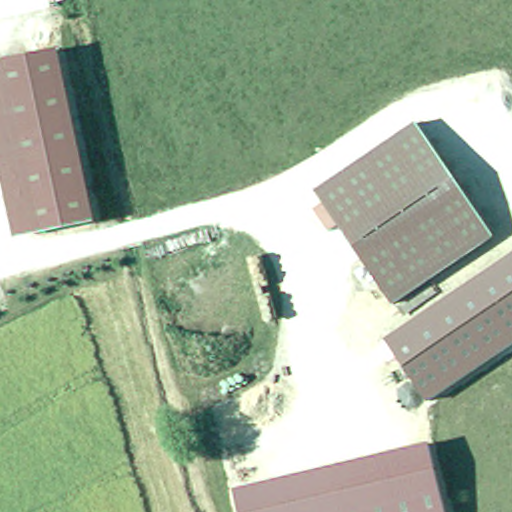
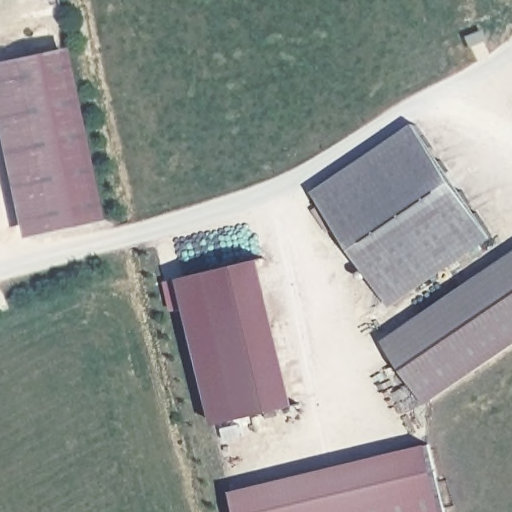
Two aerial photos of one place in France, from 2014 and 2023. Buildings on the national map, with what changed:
new [(479,31),(483,41),(465,48),(462,39),(479,31)]
unchanged [(40,231),(4,60),(63,47),(99,218),(40,231)]
unchanged [(20,235),(0,138),(0,60),(4,60),(40,231),(20,235)]
unchanged [(393,306),(316,192),(416,124),(493,237),(393,306)]
unchanged [(512,252),(512,348),(427,406),(387,339),(512,252)]
new [(302,404),(217,424),(182,277),(267,257),(302,404)]
unchanged [(445,512),(238,512),(234,492),(430,445),(445,512)]

